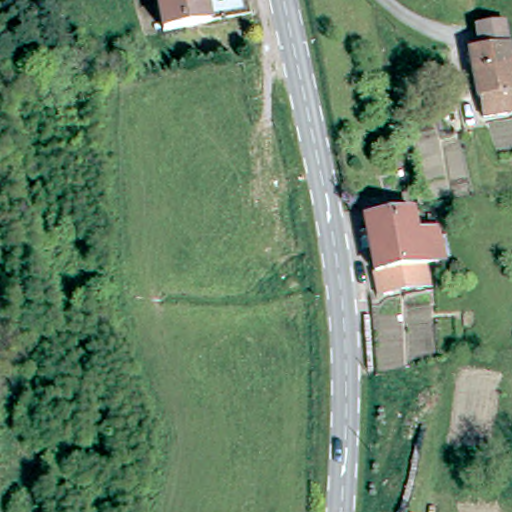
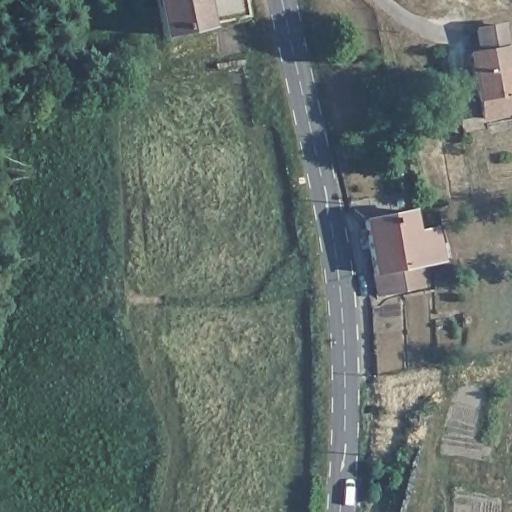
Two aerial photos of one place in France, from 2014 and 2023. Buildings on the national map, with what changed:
unchanged [(162,37),(154,0),(207,0),(212,22),(213,26),(162,37)]
unchanged [(512,49),(512,123),(487,126),(485,106),(480,106),(472,60),(483,58),(481,37),(509,33),(512,49)]
unchanged [(440,225),(447,260),(426,264),(429,282),(378,291),(366,217),(415,207),(419,229),(440,225)]

